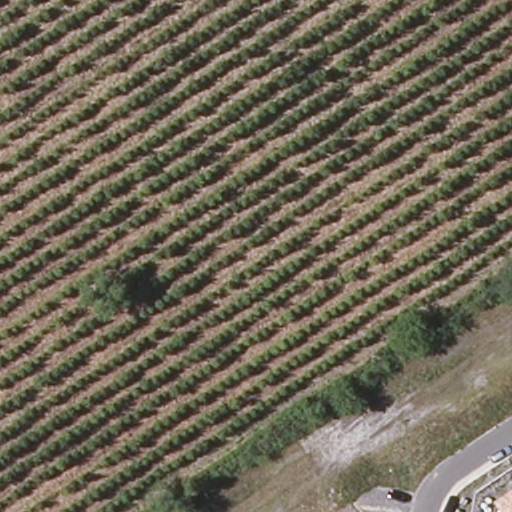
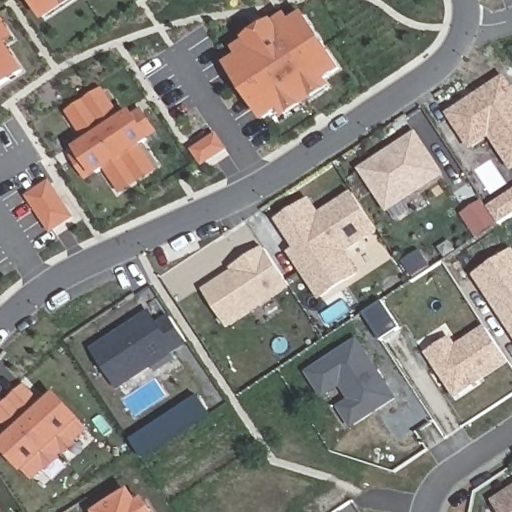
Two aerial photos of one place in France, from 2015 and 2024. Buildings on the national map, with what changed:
new [(31,0),(72,0),(44,19),(39,11),(31,0)]
new [(278,108),(262,118),(228,66),(241,58),(236,49),(249,41),(273,25),(286,16),(291,24),(303,16),(338,69),(322,79),(327,87),(312,97),(297,106),(284,116),(278,108)]
new [(8,31),(16,45),(8,50),(24,74),(0,89),(0,19),(8,31)]
new [(472,150),(447,114),(505,75),(512,86),(512,172),(490,139),(472,151),(472,150)]
new [(124,191),(118,183),(108,167),(99,174),(97,171),(89,177),(75,156),(83,151),(82,148),(90,142),(77,121),(71,113),(104,92),(109,100),(123,121),(132,115),(134,118),(143,112),(156,133),(148,139),(150,141),(140,146),(150,161),(155,170),(124,191)]
new [(374,187),(361,169),(384,155),(393,148),(415,134),(441,173),(403,198),(387,208),(374,187)]
new [(50,185),(72,217),(53,230),(31,198),(50,185)]
new [(512,217),(499,225),(487,207),(512,191),(512,217)]
new [(308,200),(317,215),(352,193),(375,228),(340,250),(354,272),(319,295),(290,251),(296,248),(278,220),(308,200)]
new [(499,225),(477,240),(461,215),(483,201),(499,225)]
new [(234,271),(232,269),(263,249),(287,285),(227,325),(204,290),(234,271)]
new [(512,254),(512,328),(478,277),(512,254)]
new [(148,312),(156,325),(169,316),(185,341),(117,385),(93,348),(148,312)]
new [(509,361),(458,395),(431,354),(452,341),(457,349),(488,328),(509,361)]
new [(311,373),(359,342),(396,398),(355,425),(343,408),(354,400),(343,384),(326,395),(311,373)]
new [(143,461),(131,443),(216,386),(228,404),(143,461)]
new [(34,478),(4,445),(16,434),(0,417),(0,413),(27,389),(44,409),(56,397),(86,429),(34,478)]
unchanged [(512,487),(512,512),(501,512),(493,499),(512,487)]
new [(132,490),(140,502),(146,498),(156,512),(99,512),(132,490)]

